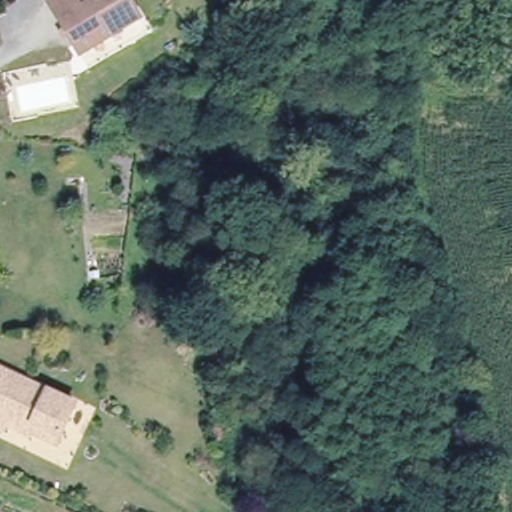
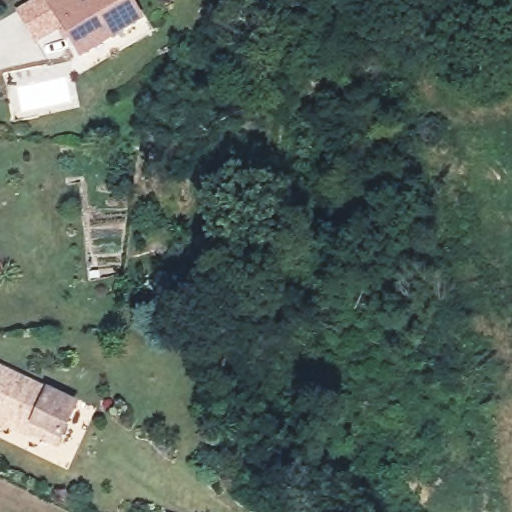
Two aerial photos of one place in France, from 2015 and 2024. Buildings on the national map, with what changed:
new [(66,25),(36,45),(15,11),(33,0),(53,0),(53,1),(66,25)]
unchanged [(81,50),(53,1),(53,0),(131,0),(141,16),(81,50)]
unchanged [(9,417),(6,425),(0,423),(0,368),(73,397),(61,429),(58,436),(31,426),(9,417)]

